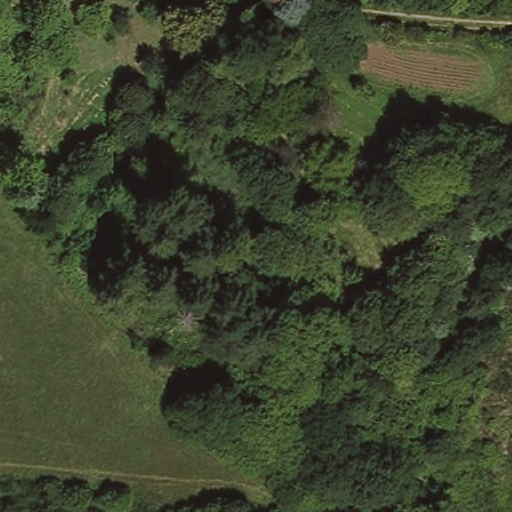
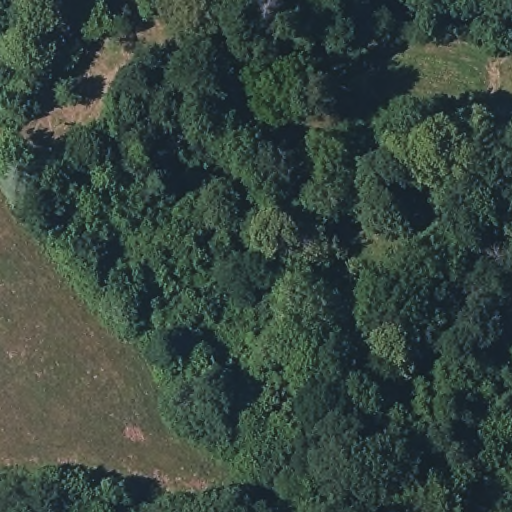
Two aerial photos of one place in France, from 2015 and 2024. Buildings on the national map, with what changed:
unchanged [(301,226),(288,235),(266,206),(281,196),(301,226)]

